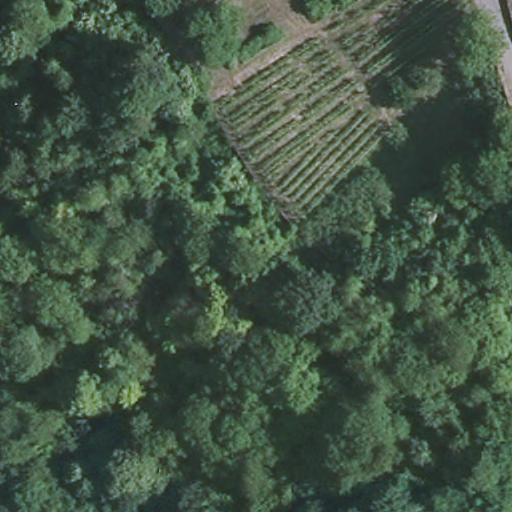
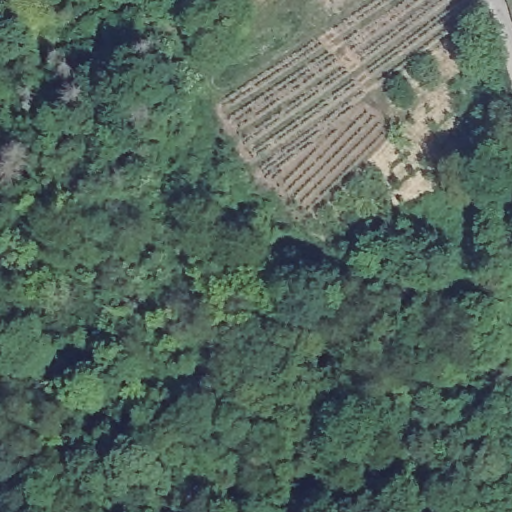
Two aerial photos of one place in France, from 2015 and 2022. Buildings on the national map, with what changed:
[]

